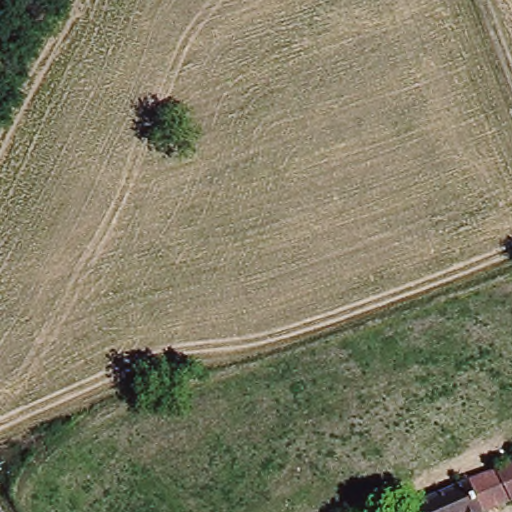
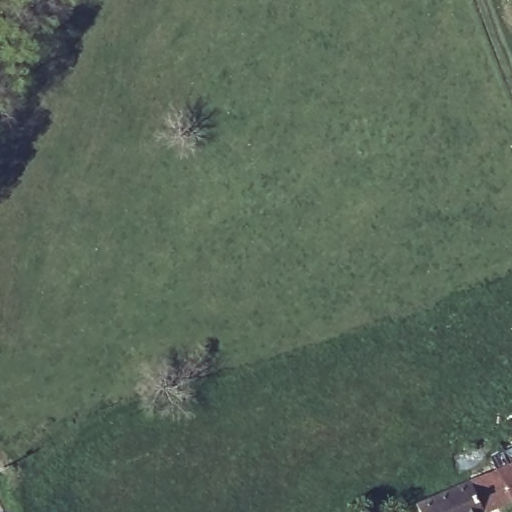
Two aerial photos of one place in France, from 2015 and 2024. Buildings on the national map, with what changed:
unchanged [(505,461),(505,460),(502,452),(512,448),(512,494),(500,463),(505,461)]
unchanged [(462,479),(475,474),(490,507),(480,512),(421,512),(420,511),(417,503),(461,480),(462,479)]

